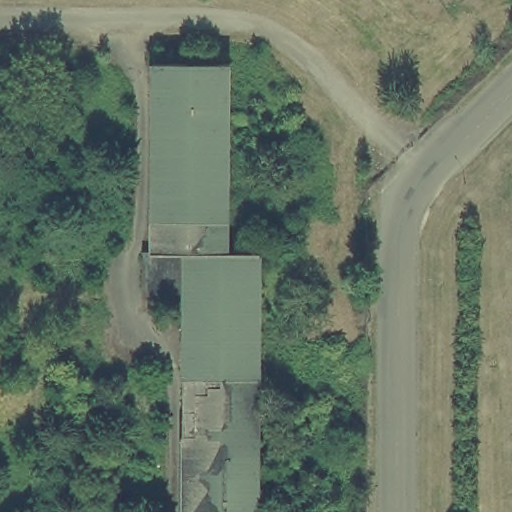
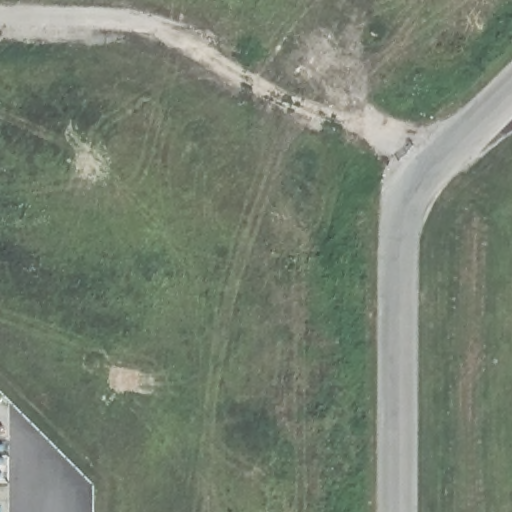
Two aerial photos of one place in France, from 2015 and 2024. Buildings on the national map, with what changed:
demolished [(233,60),(236,246),(264,249),(269,512),(184,512),(180,251),(153,249),(156,63),(233,60)]

